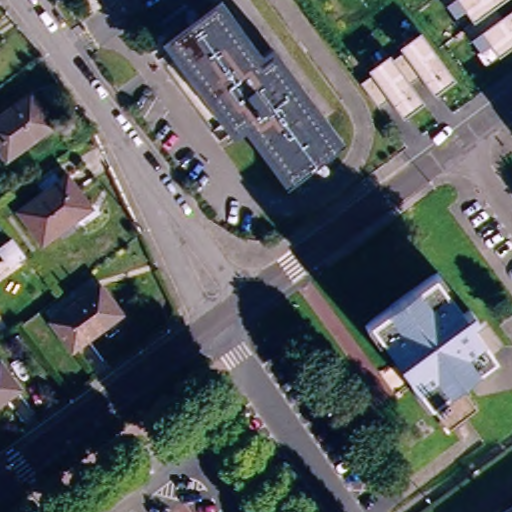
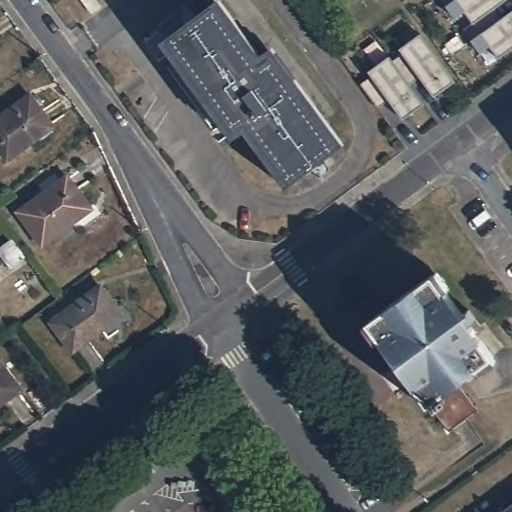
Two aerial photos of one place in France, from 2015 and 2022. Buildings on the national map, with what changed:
unchanged [(92,14),(82,0),(97,0),(102,7),(92,14)]
unchanged [(466,12),(455,18),(448,7),(458,0),(507,0),(474,23),(466,12)]
unchanged [(297,183),(296,183),(252,123),(240,131),(172,39),(221,3),(265,64),(277,55),(345,147),(322,164),(297,183)]
unchanged [(491,44),(481,51),(472,38),(512,10),(512,48),(500,57),(491,44)]
unchanged [(435,94),(420,73),(407,82),(422,104),(402,118),(387,98),(378,106),(361,82),(368,70),(389,56),(402,47),(422,34),(454,78),(435,94)]
unchanged [(25,94),(50,126),(2,160),(0,157),(0,113),(25,94)]
unchanged [(68,175),(92,209),(43,244),(19,212),(68,175)]
unchanged [(3,259),(0,254),(0,249),(14,238),(20,247),(27,256),(10,268),(3,259)]
unchanged [(433,275),(493,355),(457,381),(479,410),(450,431),(369,322),(433,275)]
unchanged [(100,285),(122,315),(72,351),(51,322),(100,285)]
unchanged [(22,394),(0,410),(0,367),(22,394)]
unchanged [(512,506),(512,512),(504,512),(512,506)]

